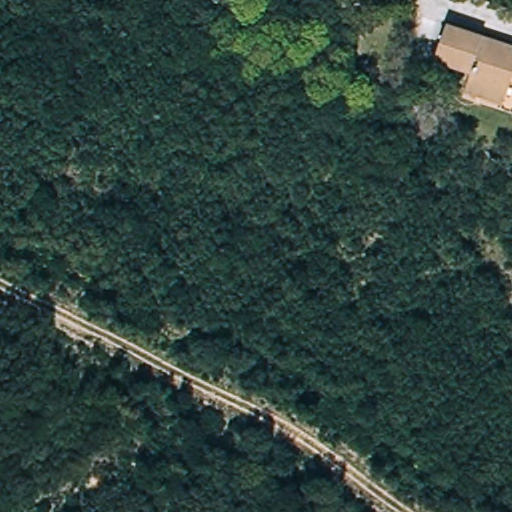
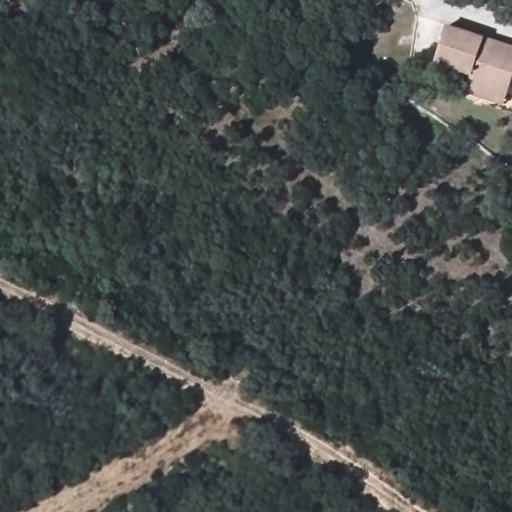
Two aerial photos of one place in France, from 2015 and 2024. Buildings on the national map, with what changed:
unchanged [(512,78),(505,98),(469,86),(472,75),(435,64),(448,25),(512,45),(512,78)]

